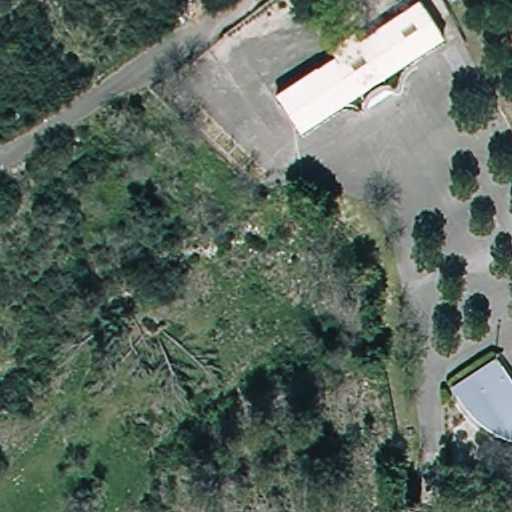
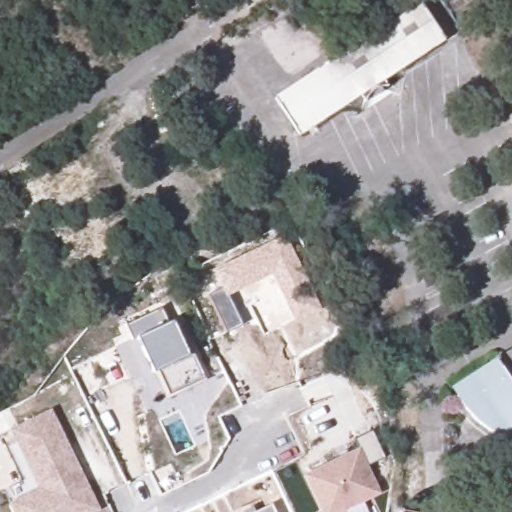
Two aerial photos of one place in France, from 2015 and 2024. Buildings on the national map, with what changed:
unchanged [(440,42),(376,82),(380,89),(363,100),(359,93),(295,134),(272,98),(333,59),(328,50),(350,37),(355,45),(417,5),(440,42)]
new [(156,381),(140,346),(135,349),(127,333),(164,316),(171,330),(175,328),(192,363),(196,361),(208,386),(172,404),(166,390),(161,392),(156,381)]
unchanged [(476,429),(468,422),(462,414),(456,405),(450,396),(498,368),(512,391),(512,434),(510,438),(507,444),(506,446),(495,442),(494,441),(485,436),(476,429)]
new [(94,512),(13,512),(9,504),(38,490),(21,454),(10,431),(50,412),(78,472),(83,484),(96,511),(94,512)]
new [(354,441),(372,432),(385,460),(367,468),(380,495),(345,512),(320,512),(303,477),(359,451),(354,441)]
new [(274,512),(256,512),(270,505),(274,512)]

